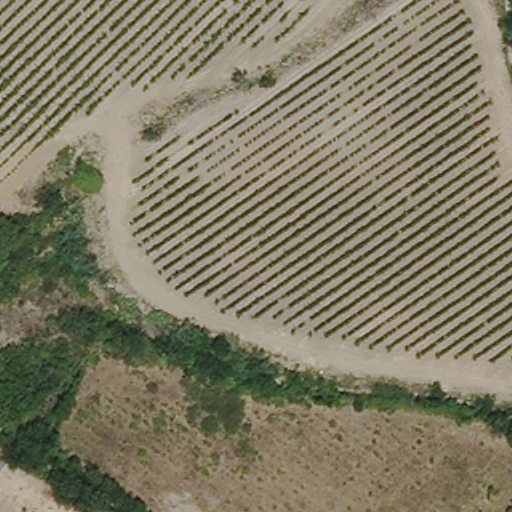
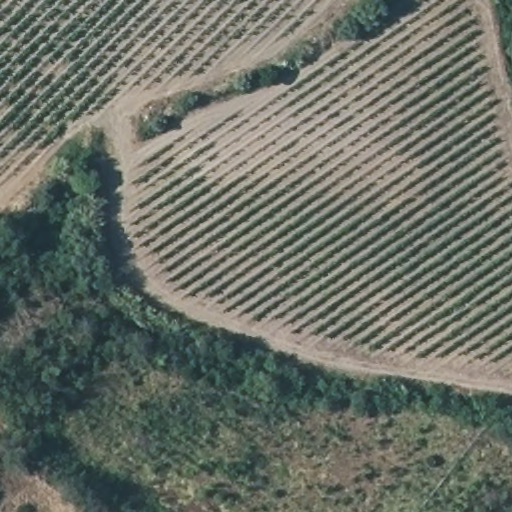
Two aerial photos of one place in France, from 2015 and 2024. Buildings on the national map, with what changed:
[]

